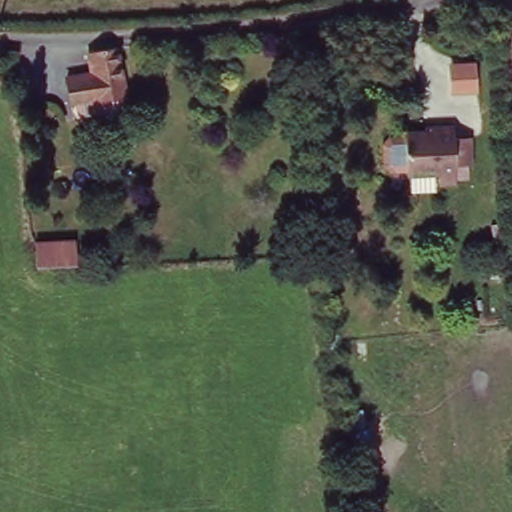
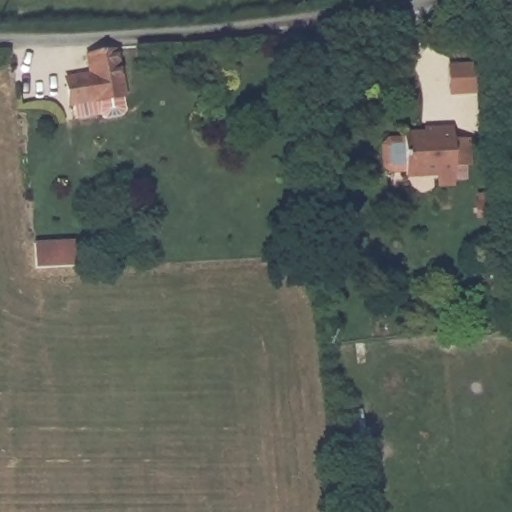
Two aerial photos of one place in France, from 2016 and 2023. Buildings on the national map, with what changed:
unchanged [(117,91),(115,91),(116,106),(112,110),(95,111),(91,107),(66,109),(65,94),(61,95),(60,73),(88,71),(88,50),(116,49),(117,91)]
unchanged [(470,164),(453,165),(455,184),(436,184),(436,173),(403,174),(403,133),(434,131),(433,123),(451,124),(452,135),(470,135),(470,164)]
unchanged [(31,245),(60,242),(74,242),(74,266),(61,266),(32,270),(31,245)]

